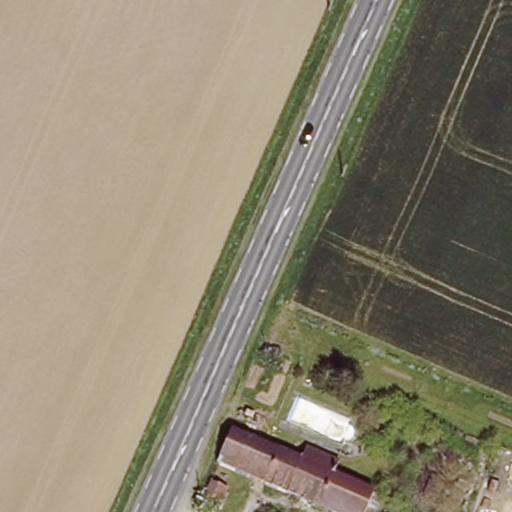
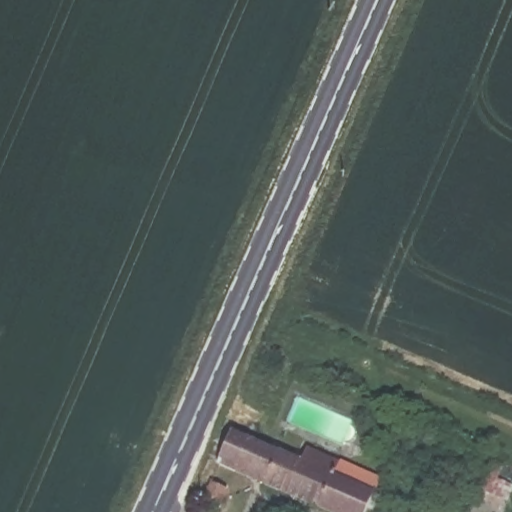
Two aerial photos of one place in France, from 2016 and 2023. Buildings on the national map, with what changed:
unchanged [(232,430),(300,462),(307,448),(348,467),(343,482),(371,495),(364,512),(325,512),(217,462),(232,430)]

